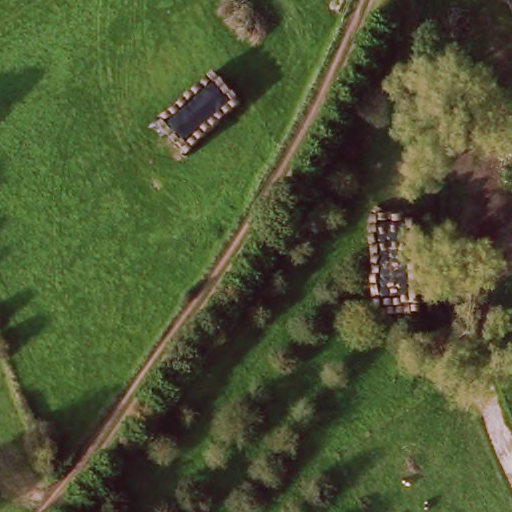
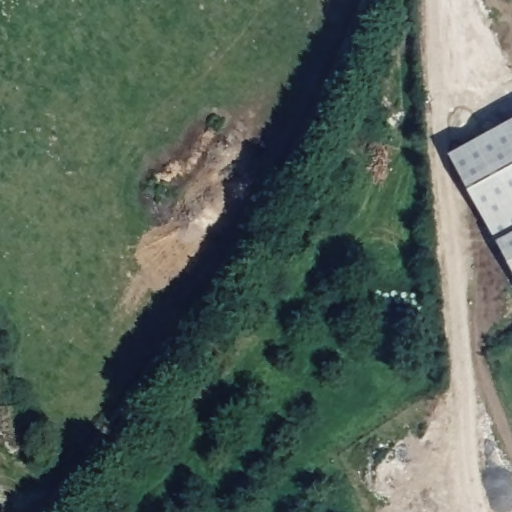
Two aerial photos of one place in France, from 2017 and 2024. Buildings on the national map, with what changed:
new [(512,117),(512,272),(447,151),(512,117)]

